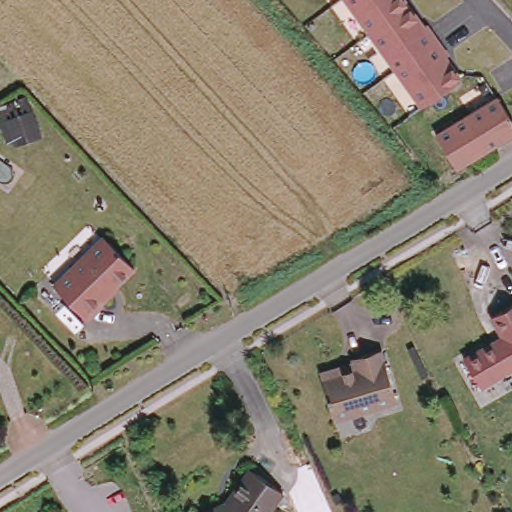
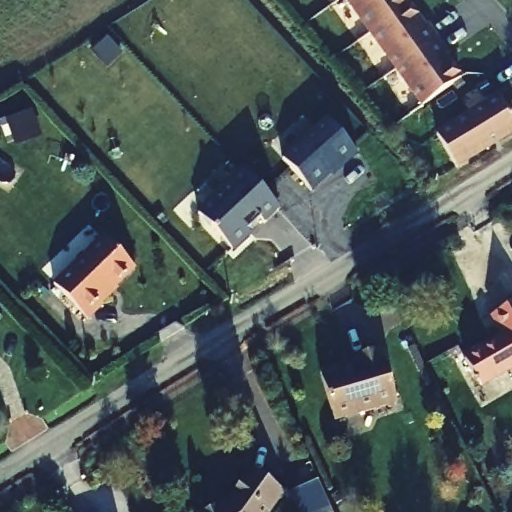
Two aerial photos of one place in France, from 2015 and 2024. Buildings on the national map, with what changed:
unchanged [(447,57),(462,81),(420,108),(343,0),(406,0),(425,26),(427,26),(449,56),(447,57)]
unchanged [(435,135),(497,98),(512,123),(512,132),(454,168),(435,135)]
demolished [(442,117),(428,126),(421,114),(435,106),(442,117)]
new [(314,194),(281,158),(325,119),(357,155),(314,194)]
new [(262,223),(259,220),(246,232),(247,234),(230,250),(197,215),(243,171),(279,209),(262,223)]
unchanged [(54,284),(104,234),(134,265),(97,300),(102,304),(87,318),(54,284)]
unchanged [(479,383),(462,359),(505,333),(492,313),(512,301),(512,362),(479,383)]
unchanged [(357,361),(356,356),(384,348),(400,399),(337,418),(322,372),(357,361)]
unchanged [(224,503),(225,506),(232,503),(238,496),(234,492),(252,466),(277,485),(284,490),(269,512),(202,512),(224,503)]
new [(288,489),(315,477),(328,504),(332,512),(299,512),(288,489)]

